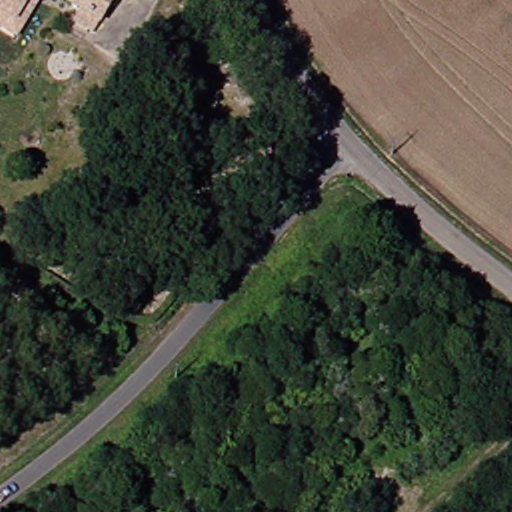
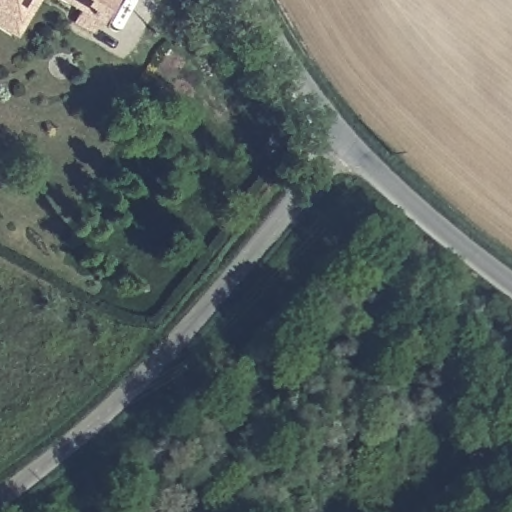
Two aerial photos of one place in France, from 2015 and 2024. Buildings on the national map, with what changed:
unchanged [(18,35),(0,25),(0,0),(41,0),(18,35)]
unchanged [(103,29),(54,0),(120,0),(103,29)]

